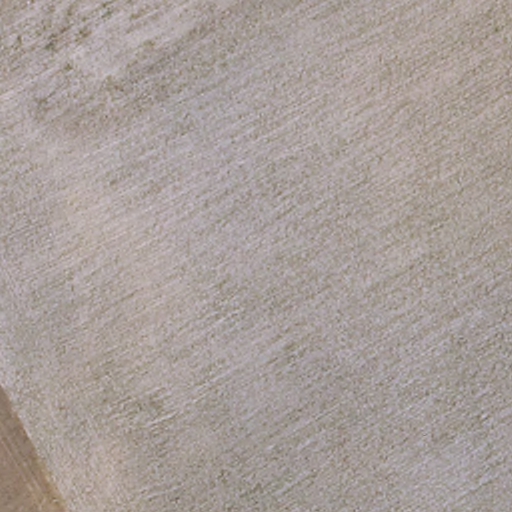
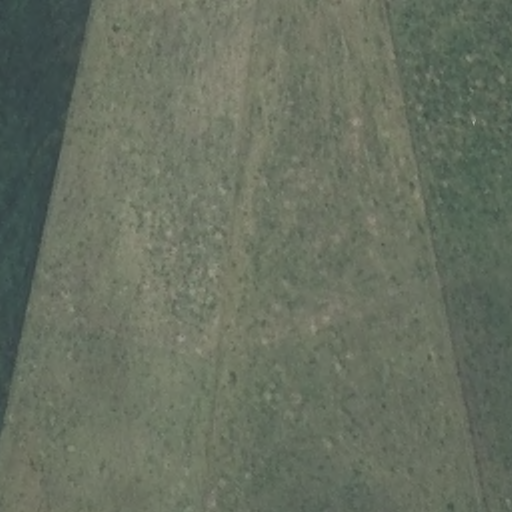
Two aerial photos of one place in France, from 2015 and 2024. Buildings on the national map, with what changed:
[]

